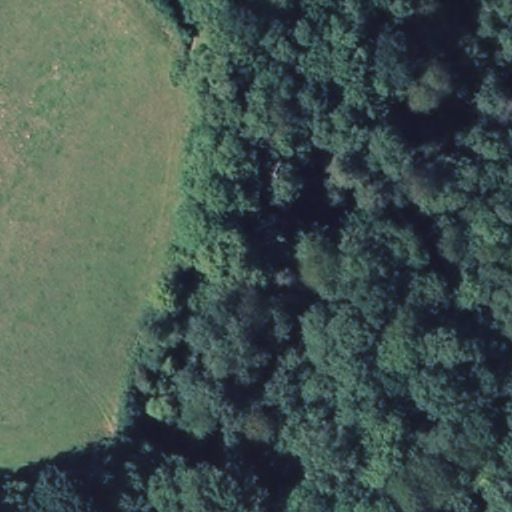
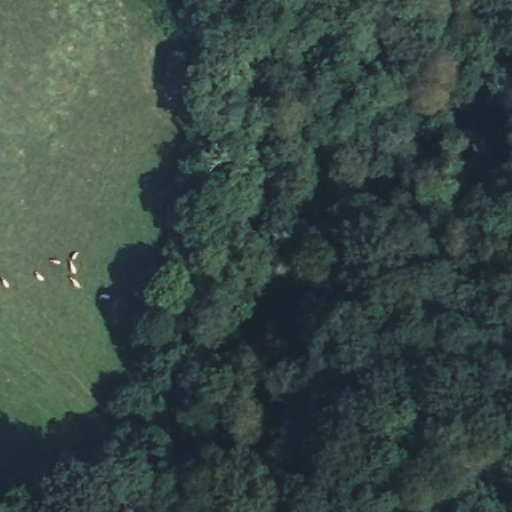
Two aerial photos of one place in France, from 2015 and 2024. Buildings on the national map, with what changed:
[]

